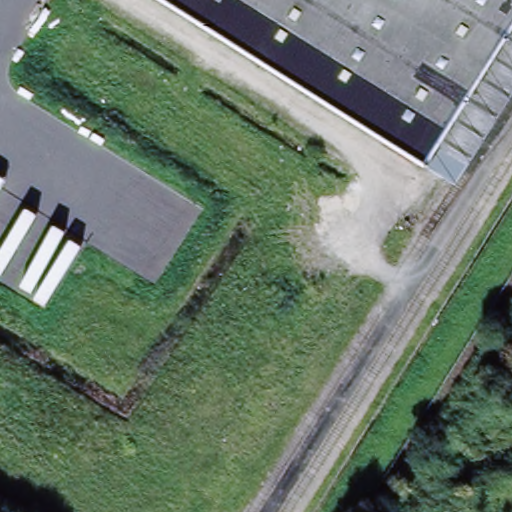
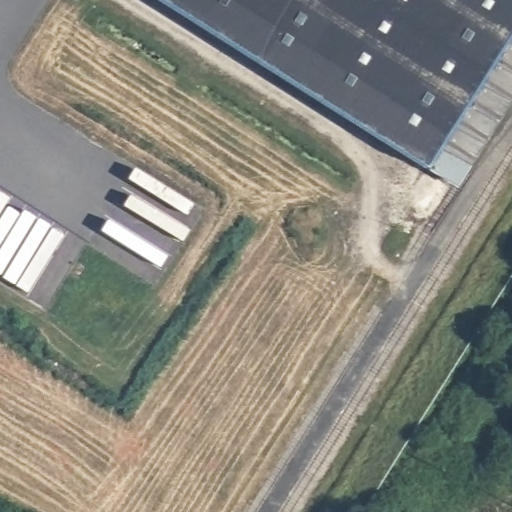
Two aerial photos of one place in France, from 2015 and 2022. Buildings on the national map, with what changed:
unchanged [(427,170),(156,0),(512,0),(512,34),(429,167),(427,170)]
unchanged [(429,167),(512,34),(512,99),(458,185),(429,167)]

